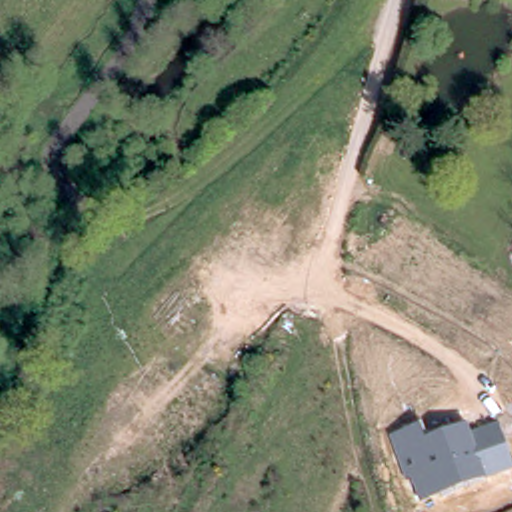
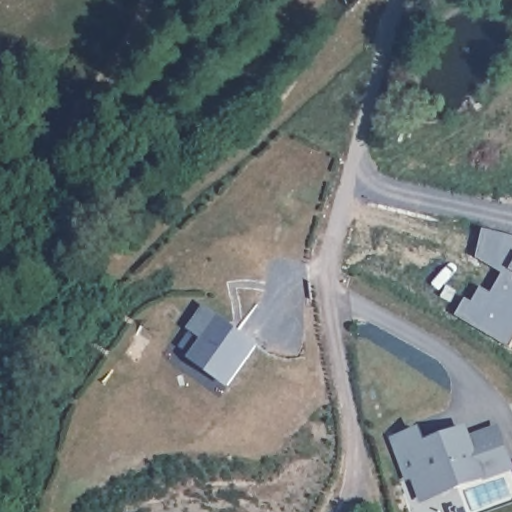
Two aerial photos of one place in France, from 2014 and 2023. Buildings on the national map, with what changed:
new [(471,298),(477,302),(486,287),(496,293),(507,273),(481,259),(488,230),(512,235),(512,346),(461,316),(471,298)]
new [(218,315),(259,344),(229,385),(186,356),(198,337),(188,330),(205,305),(218,315)]
unchanged [(389,438),(421,427),(424,438),(469,425),(472,434),(498,426),(512,463),(512,469),(486,479),(420,502),(412,480),(406,481),(389,438)]

